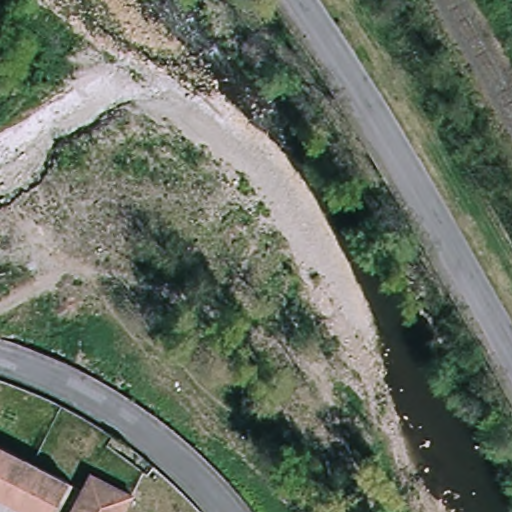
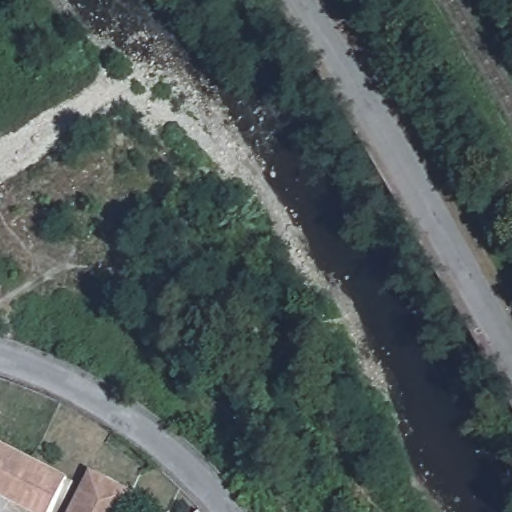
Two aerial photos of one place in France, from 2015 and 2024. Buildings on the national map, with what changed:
unchanged [(58,512),(45,512),(0,490),(0,439),(76,476),(58,512)]
unchanged [(134,491),(123,512),(72,512),(93,471),(134,491)]

